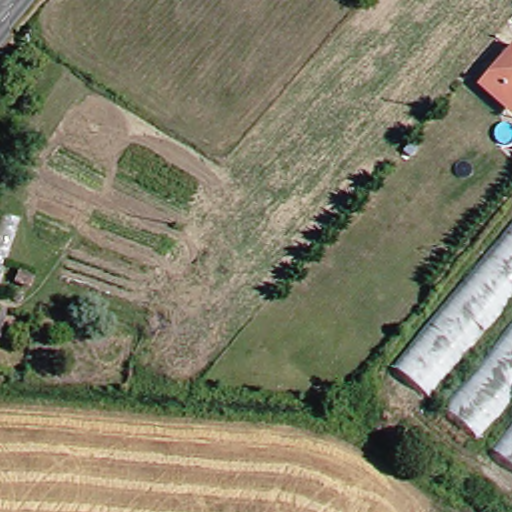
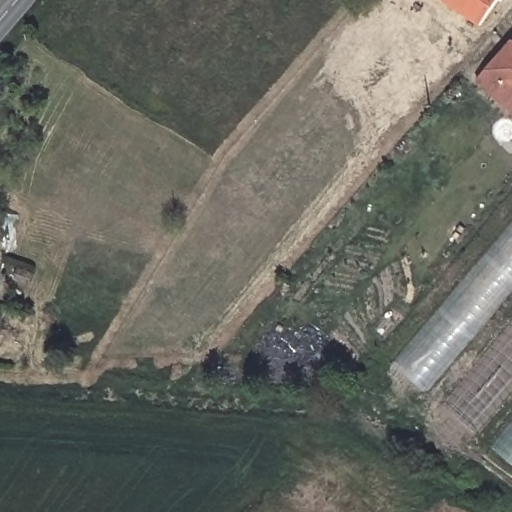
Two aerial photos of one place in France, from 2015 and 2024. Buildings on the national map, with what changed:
new [(443,0),(499,0),(480,26),(443,0)]
unchanged [(482,73),(508,44),(512,47),(512,116),(512,117),(472,84),(482,73)]
unchanged [(0,239),(0,209),(7,210),(0,239)]
unchanged [(384,359),(512,209),(512,280),(420,389),(384,359)]
new [(37,260),(35,271),(11,264),(15,255),(37,260)]
unchanged [(434,407),(512,312),(512,383),(469,434),(434,407)]
unchanged [(512,412),(512,468),(485,444),(512,412)]

